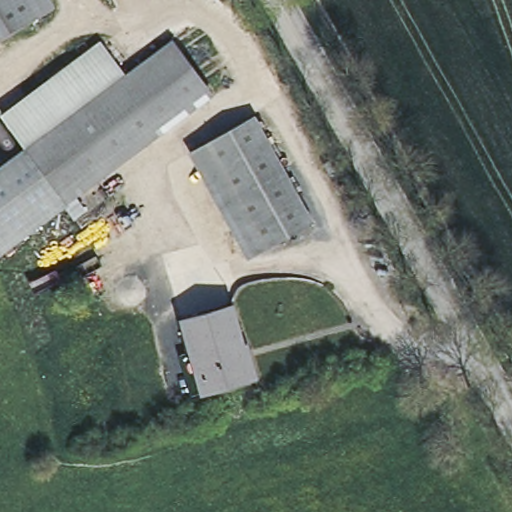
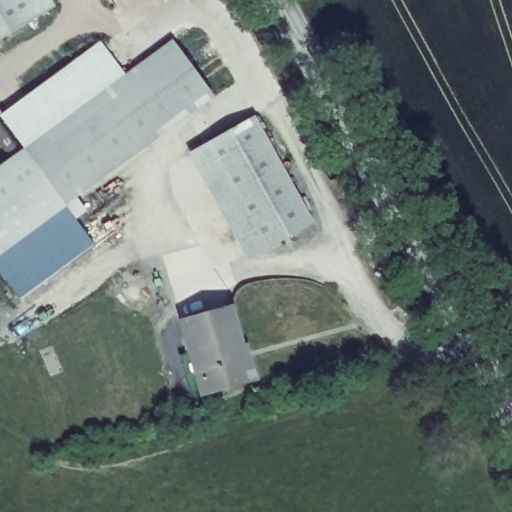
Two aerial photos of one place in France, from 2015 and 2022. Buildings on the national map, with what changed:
unchanged [(36,0),(43,11),(0,37),(0,0),(36,0)]
unchanged [(24,148),(0,116),(100,41),(125,74),(172,40),(214,97),(0,257),(0,165),(24,148)]
unchanged [(255,254),(196,148),(245,122),(303,227),(255,254)]
new [(87,211),(75,219),(96,245),(21,301),(0,275),(0,257),(78,199),(87,211)]
unchanged [(244,346),(240,347),(249,380),(203,393),(197,374),(203,372),(197,351),(192,353),(182,320),(232,307),(244,346)]

